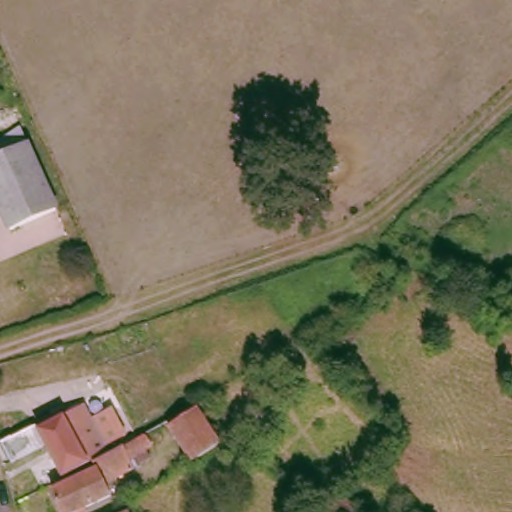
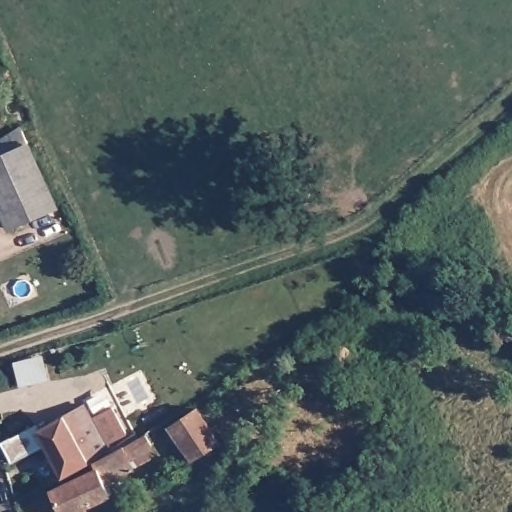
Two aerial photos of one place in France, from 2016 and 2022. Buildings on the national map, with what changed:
unchanged [(23,127),(61,207),(15,228),(0,196),(0,142),(23,127)]
unchanged [(224,443),(198,460),(175,425),(201,408),(224,443)]
unchanged [(50,450),(16,467),(6,448),(40,429),(43,435),(90,410),(97,423),(118,411),(132,438),(112,450),(114,455),(68,480),(50,450)]
unchanged [(128,450),(129,451),(150,439),(155,448),(132,461),(137,471),(109,485),(115,498),(87,512),(66,512),(58,495),(102,475),(99,468),(128,450)]

